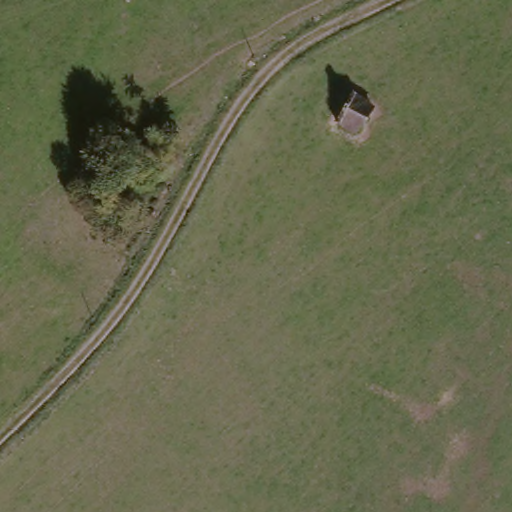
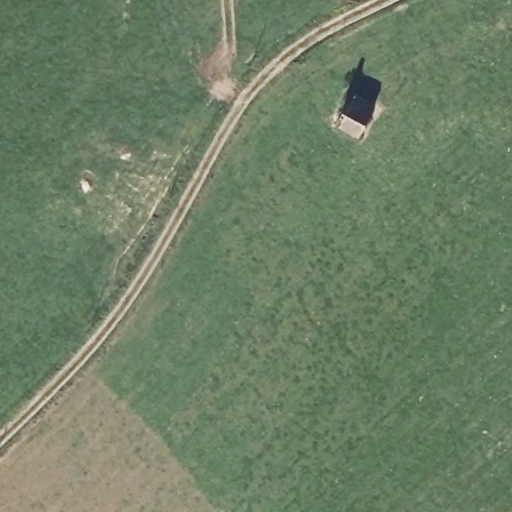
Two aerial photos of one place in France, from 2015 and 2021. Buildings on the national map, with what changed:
unchanged [(350,94),(371,114),(359,137),(334,125),(350,94)]

